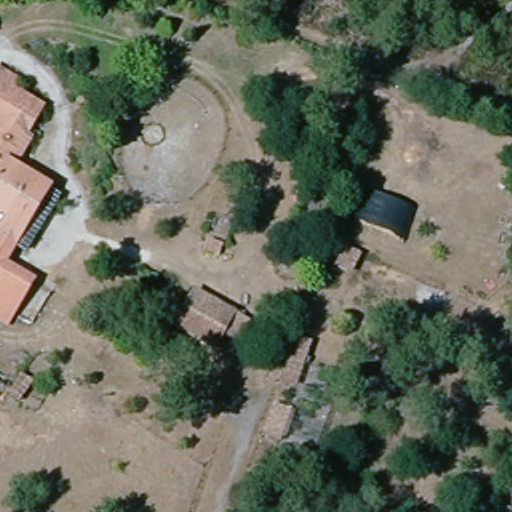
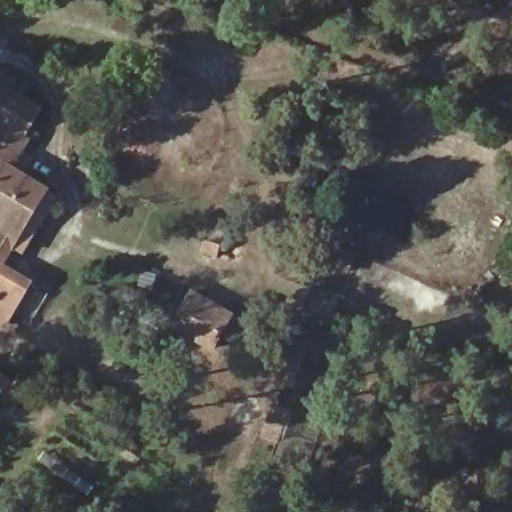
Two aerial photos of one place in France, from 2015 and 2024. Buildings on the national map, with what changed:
unchanged [(0,325),(0,70),(26,83),(21,92),(45,106),(29,136),(33,139),(17,167),(52,187),(8,265),(36,281),(7,329),(0,325)]
unchanged [(333,267),(342,247),(361,256),(352,275),(333,267)]
unchanged [(171,331),(193,293),(239,318),(217,354),(171,331)]
unchanged [(281,383),(295,338),(311,344),(297,388),(281,383)]
unchanged [(7,395),(21,375),(32,384),(19,403),(7,395)]
unchanged [(261,436),(272,405),(295,413),(285,443),(261,436)]

